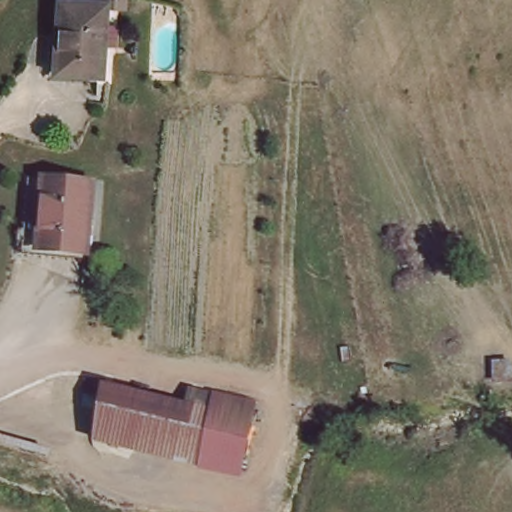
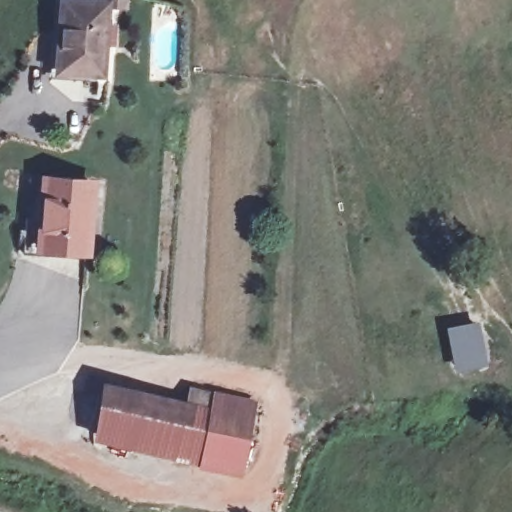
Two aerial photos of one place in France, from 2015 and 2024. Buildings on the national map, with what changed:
unchanged [(86,0),(115,6),(99,72),(53,61),(67,0),(86,0)]
unchanged [(43,176),(105,191),(91,255),(28,241),(43,176)]
new [(480,320),(488,367),(453,372),(445,328),(480,320)]
unchanged [(208,404),(210,390),(252,395),(245,460),(180,453),(189,402),(208,404)]
unchanged [(97,445),(104,393),(189,402),(180,453),(97,445)]

